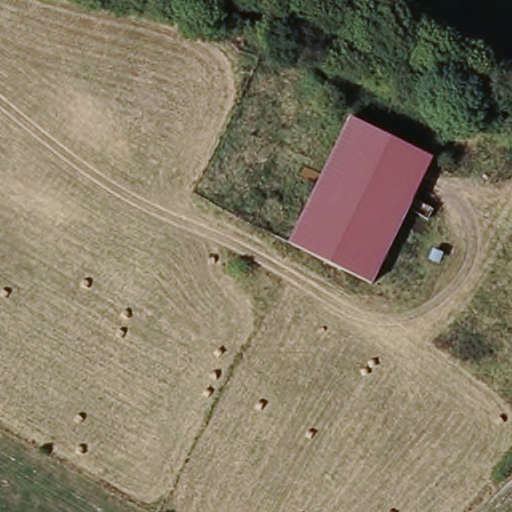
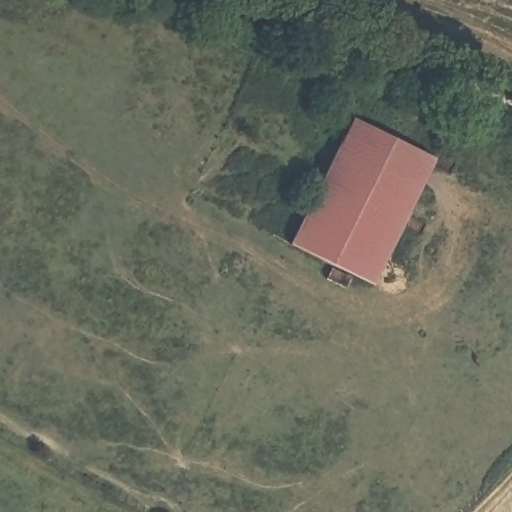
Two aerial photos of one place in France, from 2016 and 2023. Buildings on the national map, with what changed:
unchanged [(353,123),(435,162),(372,289),(291,249),(353,123)]

